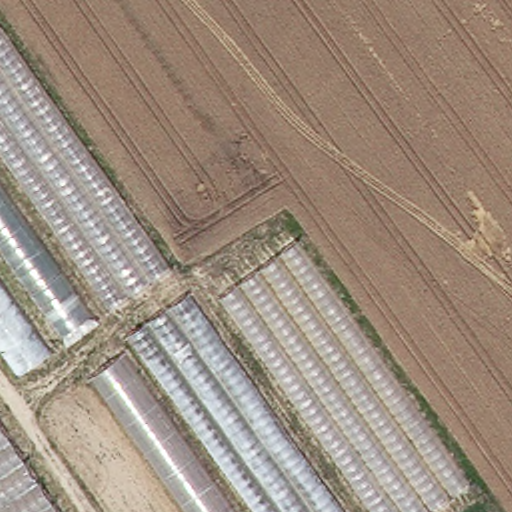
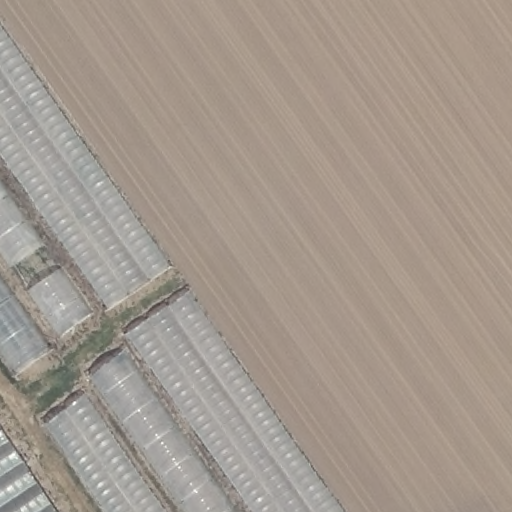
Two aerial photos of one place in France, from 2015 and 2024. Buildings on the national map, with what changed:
unchanged [(345,512),(253,512),(0,153),(0,12),(345,512)]
unchanged [(60,334),(0,252),(0,189),(89,313),(60,334)]
demolished [(432,512),(370,512),(217,295),(296,236),(474,482),(432,512)]
unchanged [(11,368),(0,353),(0,292),(40,350),(11,368)]
unchanged [(185,512),(88,375),(121,348),(237,512),(185,512)]
new [(86,394),(169,512),(111,512),(50,423),(86,394)]
unchanged [(49,512),(0,512),(0,439),(49,512)]

